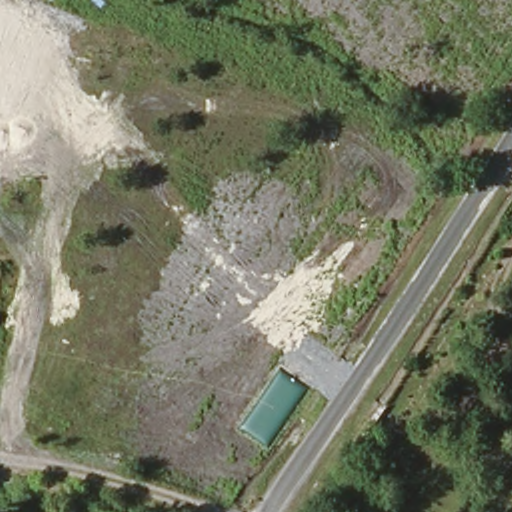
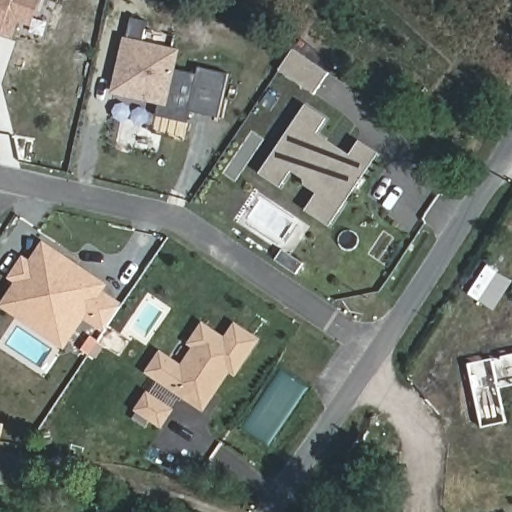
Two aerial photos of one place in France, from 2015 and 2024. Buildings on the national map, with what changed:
new [(20,22),(15,38),(4,35),(0,34),(0,0),(43,0),(33,27),(20,22)]
new [(168,107),(111,94),(124,37),(181,49),(168,107)]
new [(293,49),(329,73),(315,94),(280,70),(293,49)]
new [(200,77),(226,83),(219,111),(193,104),(200,77)]
new [(259,174),(306,103),(328,118),(318,132),(351,154),(360,140),(380,153),(331,225),(307,208),(317,193),(306,186),(306,181),(292,171),(280,189),(259,174)]
new [(82,317),(78,324),(64,315),(56,327),(23,305),(31,293),(18,284),(10,279),(22,262),(29,266),(42,247),(75,269),(71,274),(78,279),(80,277),(86,281),(88,278),(102,287),(97,294),(119,308),(107,327),(130,342),(119,359),(96,344),(104,331),(82,317)]
new [(18,284),(31,293),(23,305),(56,327),(64,315),(78,324),(62,347),(3,307),(18,284)]
new [(236,376),(231,373),(205,412),(145,372),(161,350),(182,364),(192,348),(187,345),(203,322),(226,337),(235,322),(261,339),(236,376)]
new [(492,359),(493,361),(501,359),(500,357),(512,354),(512,385),(499,387),(506,422),(481,427),(467,364),(492,359)]

